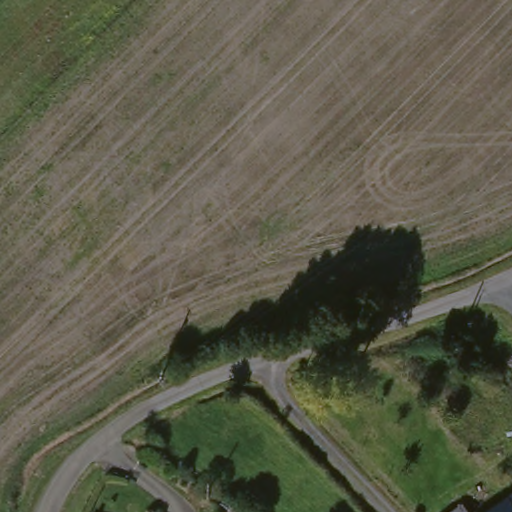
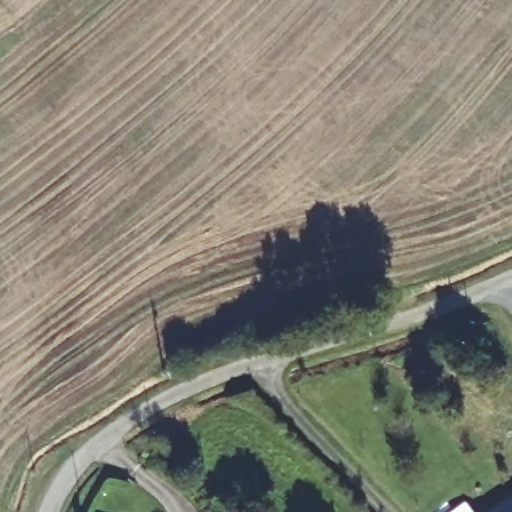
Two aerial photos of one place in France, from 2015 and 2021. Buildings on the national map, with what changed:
unchanged [(512,498),(512,501),(511,499),(512,498)]
unchanged [(512,501),(512,512),(491,512),(511,499),(512,501)]
unchanged [(467,512),(458,512),(464,508),(467,512)]

